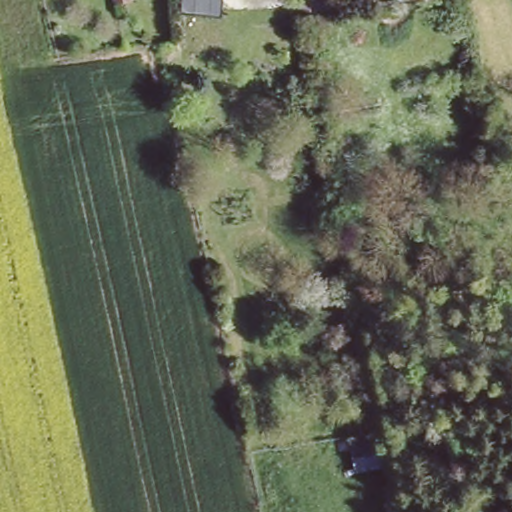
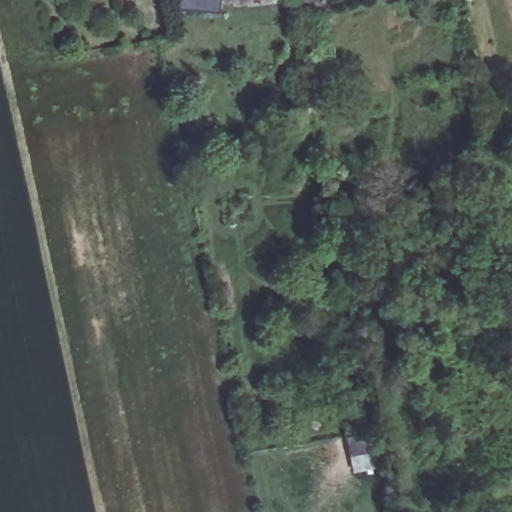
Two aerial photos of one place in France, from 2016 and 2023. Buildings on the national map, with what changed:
unchanged [(116,2),(116,0),(127,0),(116,2)]
unchanged [(379,466),(360,470),(352,440),(372,435),(379,466)]

